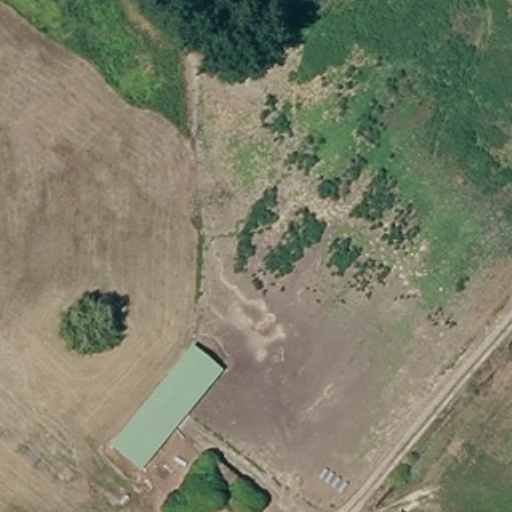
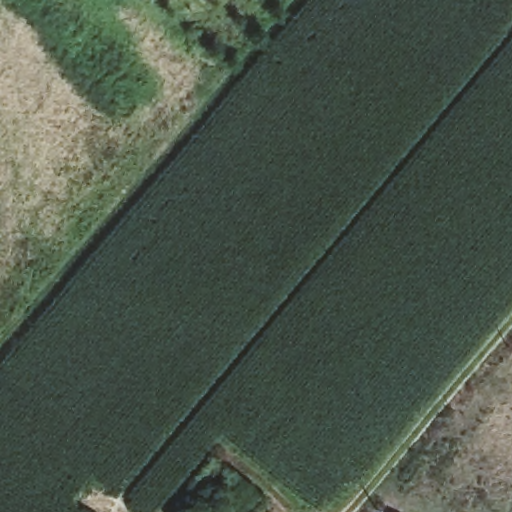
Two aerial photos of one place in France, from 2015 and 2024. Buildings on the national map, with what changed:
demolished [(115,444),(180,368),(196,349),(222,372),(207,391),(142,467),(115,444)]
demolished [(261,506),(256,512),(173,512),(210,467),(261,506)]

